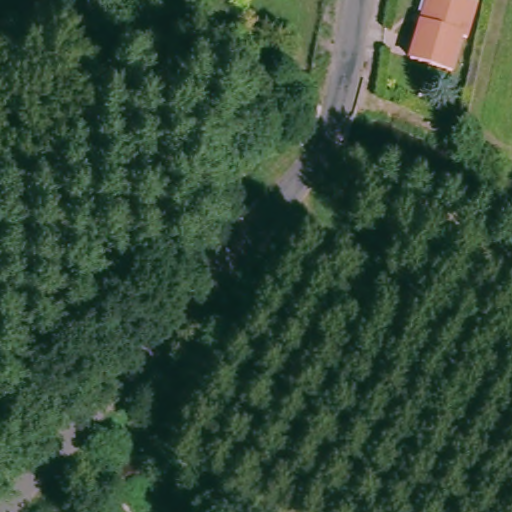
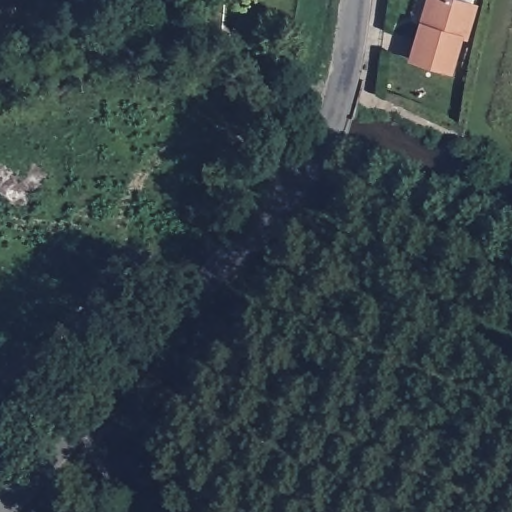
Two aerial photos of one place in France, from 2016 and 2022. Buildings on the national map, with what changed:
unchanged [(465,38),(454,74),(412,62),(422,25),(428,0),(452,0),(479,7),(470,40),(465,38)]

